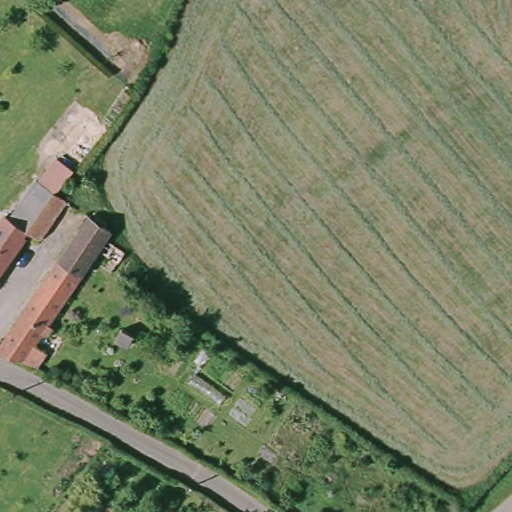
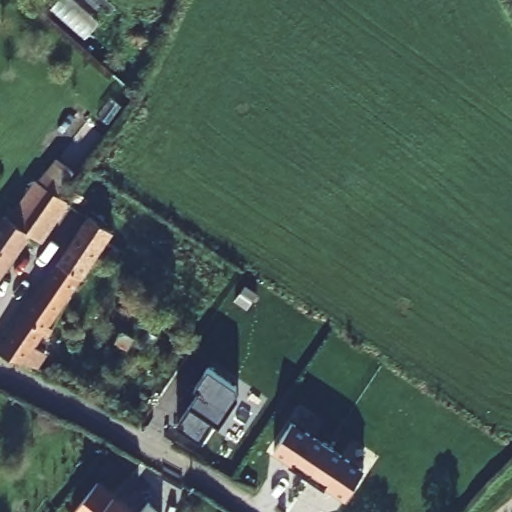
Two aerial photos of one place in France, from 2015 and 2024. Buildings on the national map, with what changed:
new [(39,181),(55,159),(73,172),(58,194),(39,181)]
unchanged [(4,216),(8,219),(36,179),(55,192),(60,196),(67,201),(39,241),(27,233),(0,271),(0,221),(4,216)]
unchanged [(64,298),(60,295),(43,320),(48,323),(41,332),(38,329),(29,340),(41,348),(32,362),(24,359),(0,349),(0,336),(84,212),(106,227),(101,235),(120,247),(113,258),(94,245),(90,251),(64,290),(68,292),(64,298)]
unchanged [(134,337),(128,347),(115,339),(121,329),(134,337)]
new [(238,384),(243,393),(223,421),(218,417),(204,436),(181,420),(192,404),(183,398),(194,382),(197,384),(210,365),(238,384)]
new [(331,442),(309,475),(293,464),(296,460),(276,447),(296,418),(331,442)]
new [(368,466),(348,495),(328,482),(326,486),(309,475),(331,442),(368,466)]
new [(134,512),(74,512),(98,483),(134,512)]
new [(162,512),(141,512),(149,502),(162,512)]

